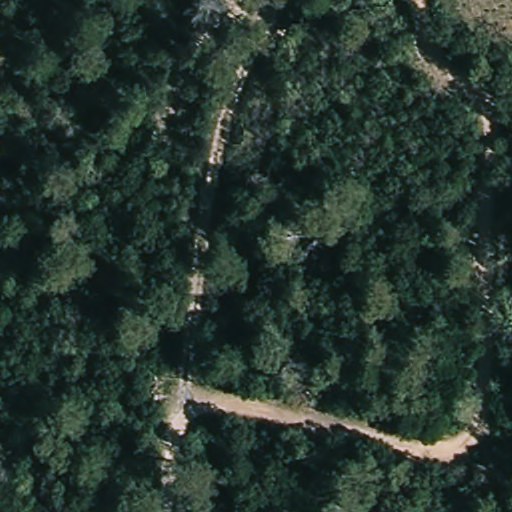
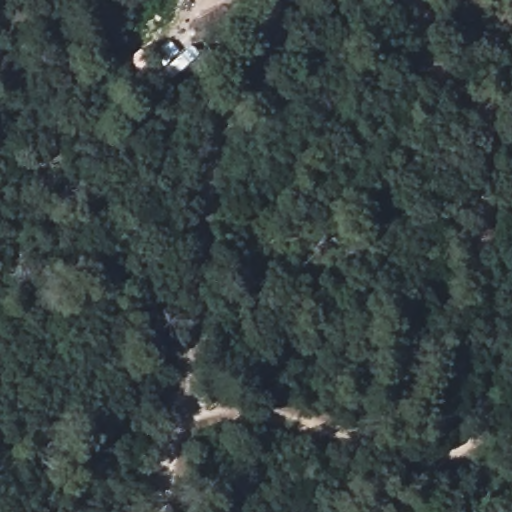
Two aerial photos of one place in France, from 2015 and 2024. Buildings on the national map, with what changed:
[]

